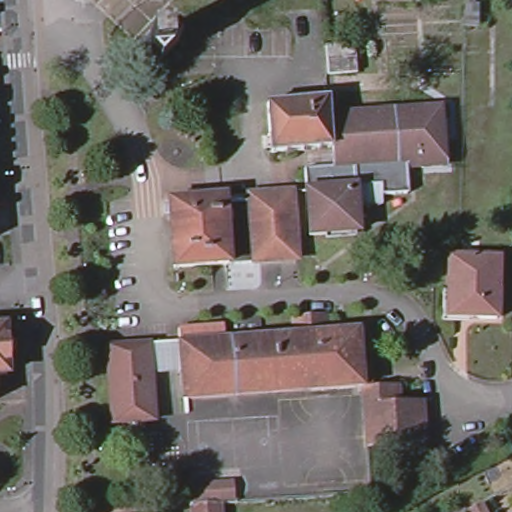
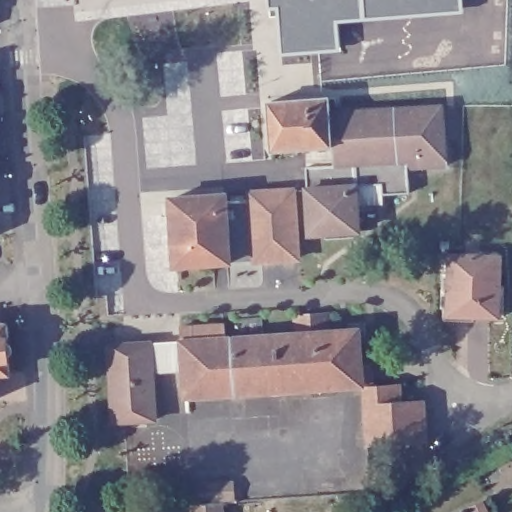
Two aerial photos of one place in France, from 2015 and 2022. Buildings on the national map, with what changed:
new [(338,21),(339,49),(281,53),(278,6),(268,7),(267,0),(363,0),(364,18),(338,21)]
unchanged [(331,97),(336,108),(450,103),(453,167),(416,170),(412,194),(387,194),(387,208),(364,207),(359,234),(314,237),(316,189),(335,187),(341,172),(302,175),(306,153),(270,155),(275,96),(331,97)]
unchanged [(288,263),(263,264),(257,197),(283,194),(299,193),(301,227),(304,262),(288,263)]
unchanged [(178,204),(233,199),(237,265),(183,269),(178,204)]
unchanged [(448,264),(497,265),(495,324),(445,323),(448,264)]
unchanged [(297,342),(296,325),(329,323),(331,340),(361,339),(365,395),(238,403),(235,347),(297,342)]
unchanged [(9,324),(11,372),(0,373),(0,324),(9,324)]
unchanged [(183,349),(182,335),(226,333),(228,347),(235,347),(238,403),(186,406),(183,349)]
unchanged [(176,341),(176,374),(155,374),(156,431),(107,432),(105,343),(176,341)]
unchanged [(427,451),(379,454),(369,454),(365,395),(400,393),(402,411),(424,409),(425,431),(427,451)]
unchanged [(193,484),(236,481),(238,500),(221,502),(222,512),(195,512),(194,503),(193,484)]

